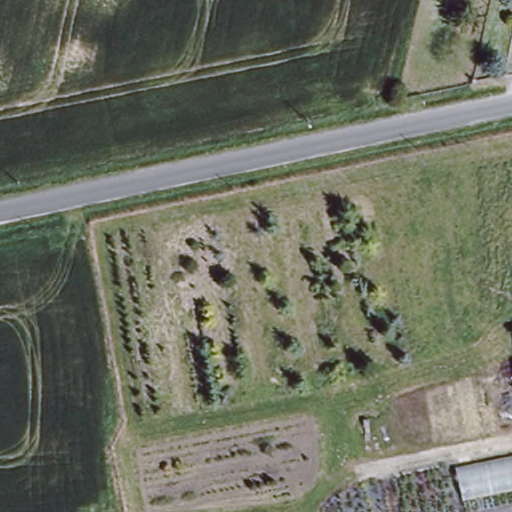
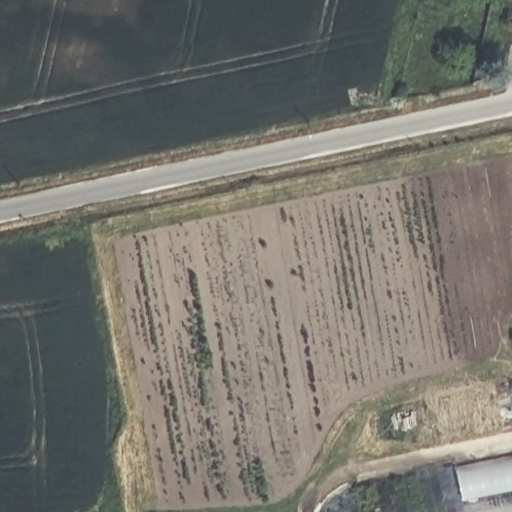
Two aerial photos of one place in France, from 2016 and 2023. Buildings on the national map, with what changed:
unchanged [(512,460),(512,489),(466,498),(459,471),(512,460)]

